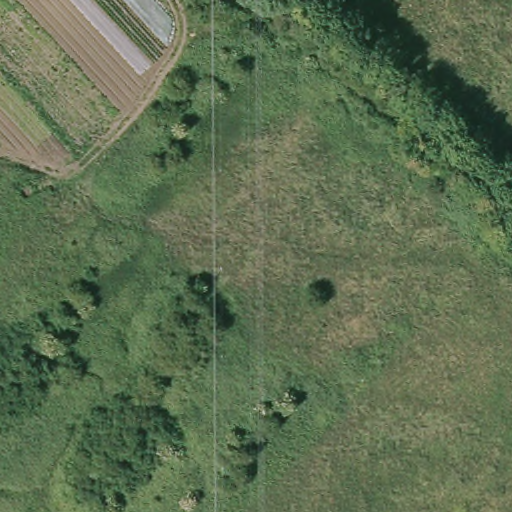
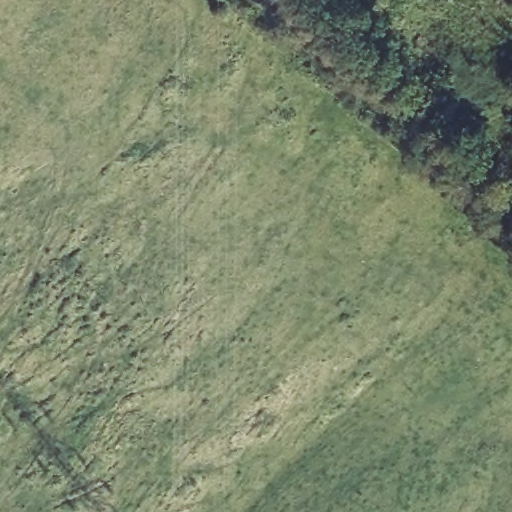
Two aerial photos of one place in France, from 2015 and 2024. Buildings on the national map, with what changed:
[]

